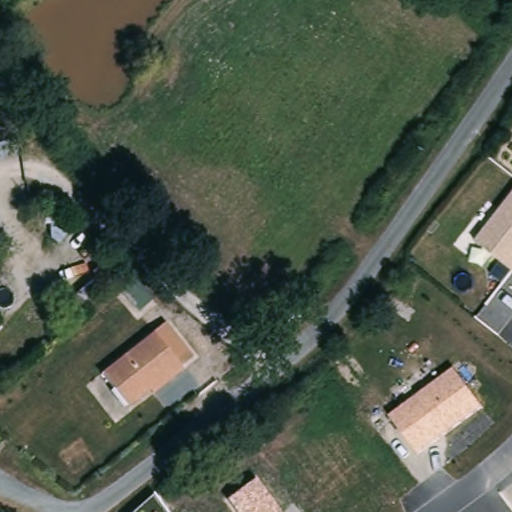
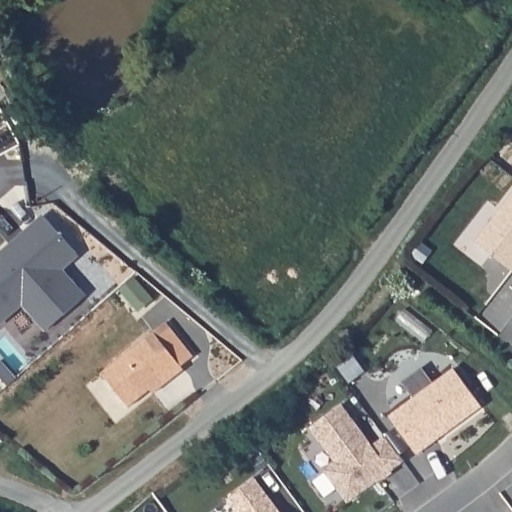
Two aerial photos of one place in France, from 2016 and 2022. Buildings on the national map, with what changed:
unchanged [(474,242),(512,194),(512,270),(474,242)]
new [(23,302),(0,323),(0,259),(44,219),(76,254),(61,267),(87,295),(64,316),(49,330),(36,317),(23,302)]
unchanged [(193,355),(182,363),(184,368),(153,391),(151,388),(128,405),(104,371),(166,321),(193,355)]
unchanged [(390,416),(454,369),(482,407),(419,455),(390,416)]
new [(348,504),(324,471),(335,463),(310,429),(343,405),(373,447),(386,437),(404,462),(392,472),(393,474),(379,485),(378,482),(369,488),(348,504)]
unchanged [(236,512),(227,500),(257,479),(281,512),(236,512)]

